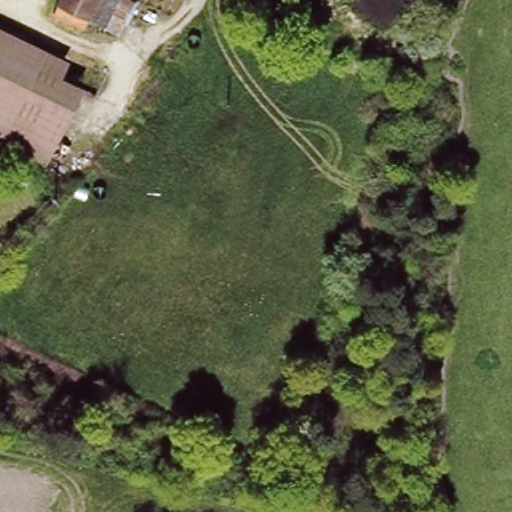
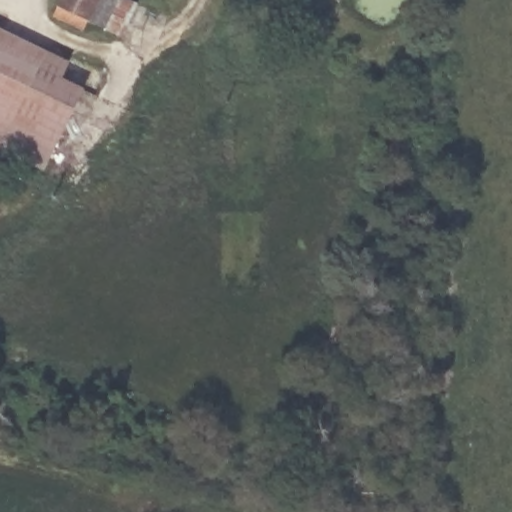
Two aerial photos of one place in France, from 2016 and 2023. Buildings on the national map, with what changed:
unchanged [(54,0),(134,0),(137,1),(120,34),(87,17),(82,29),(48,11),(54,0)]
unchanged [(58,82),(81,94),(42,175),(0,154),(0,32),(67,64),(58,82)]

